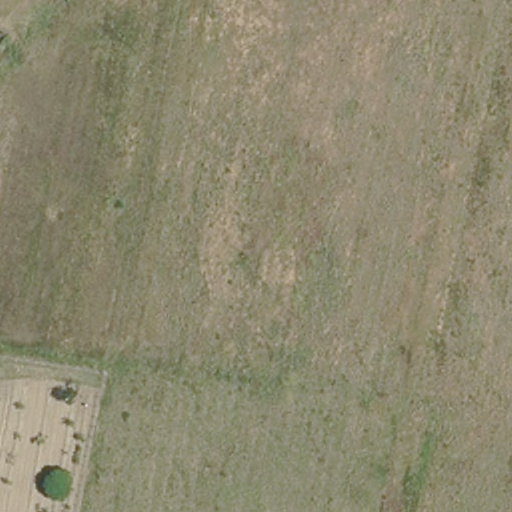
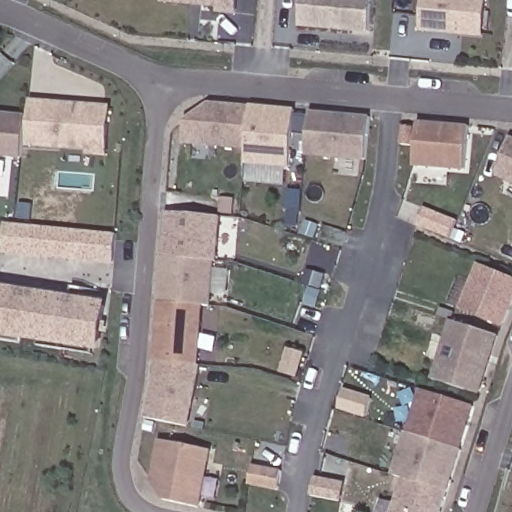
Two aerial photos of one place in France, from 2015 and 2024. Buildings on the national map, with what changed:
new [(235,14),(219,13),(220,7),(202,5),(199,1),(194,1),(190,3),(164,1),(164,0),(237,0),(235,14)]
new [(370,32),(299,25),(301,0),(373,0),(370,32)]
new [(483,36),(422,31),(425,0),(486,0),(483,36)]
new [(89,155),(89,151),(28,146),(32,102),(111,109),(106,156),(89,155)]
new [(250,107),(247,148),(184,143),(186,122),(209,103),(250,107)]
new [(296,111),(289,168),(245,163),(247,148),(250,107),(296,111)]
new [(371,118),(367,160),(306,155),(310,112),(371,118)]
new [(25,118),(21,160),(0,158),(0,116),(25,118)]
new [(470,127),(466,170),(415,166),(418,122),(470,127)]
new [(413,146),(402,145),(403,127),(415,128),(413,146)]
new [(512,140),(512,182),(497,176),(512,140)]
new [(232,215),(220,214),(221,198),(234,199),(232,215)]
new [(162,258),(165,213),(221,218),(218,263),(214,263),(162,258)]
new [(5,224),(116,235),(113,265),(2,253),(5,224)]
new [(214,263),(210,308),(202,307),(158,303),(162,258),(214,263)]
new [(512,305),(503,327),(463,311),(481,265),(512,278),(512,305)]
new [(21,336),(20,344),(0,342),(0,283),(71,294),(72,288),(103,293),(101,306),(104,307),(97,348),(96,355),(38,346),(39,339),(21,336)]
new [(198,367),(154,363),(158,303),(202,307),(198,367)]
new [(499,337),(480,396),(433,381),(453,322),(499,337)]
new [(187,428),(145,420),(152,383),(154,363),(200,367),(187,428)]
new [(460,451),(409,435),(422,392),(474,408),(460,451)]
new [(449,495),(406,481),(395,478),(409,435),(460,451),(462,452),(449,495)]
new [(210,453),(199,510),(165,503),(152,484),(160,443),(210,453)]
new [(282,474),(279,492),(249,487),(253,468),(282,474)]
new [(444,512),(396,512),(406,481),(449,495),(444,512)]
new [(340,504),(311,498),(315,482),(344,487),(340,504)]

